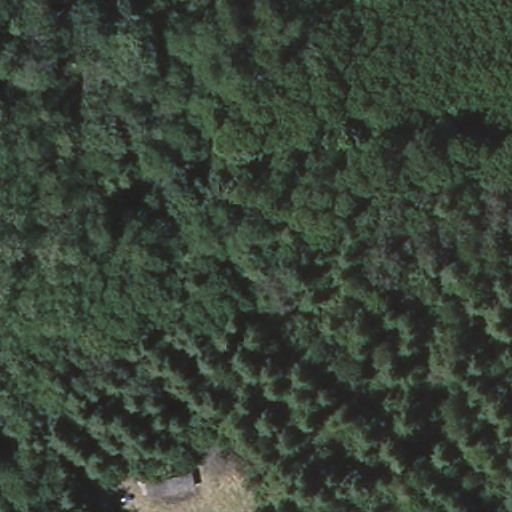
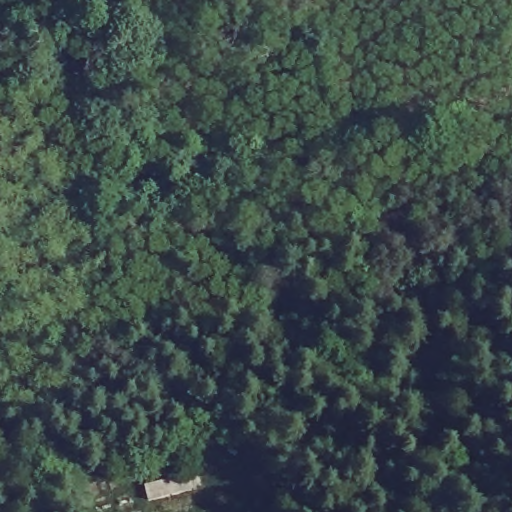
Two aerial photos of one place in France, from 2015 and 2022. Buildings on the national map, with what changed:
unchanged [(192,467),(202,494),(157,505),(150,477),(192,467)]

